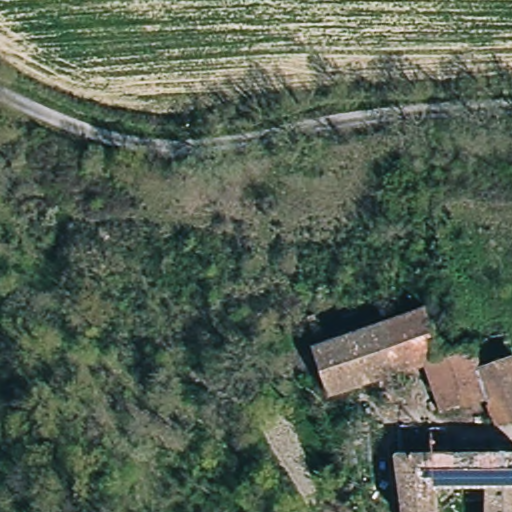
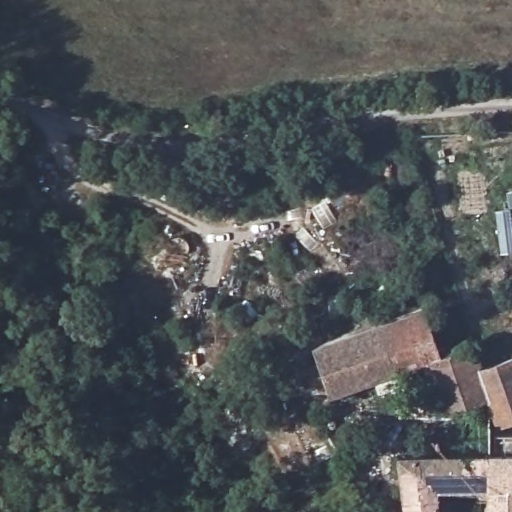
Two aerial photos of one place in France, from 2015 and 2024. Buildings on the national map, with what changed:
new [(507,193),(512,192),(512,209),(509,209),(512,231),(512,253),(501,254),(496,211),(507,209),(509,199),(507,193)]
unchanged [(387,372),(338,386),(321,344),(419,309),(434,349),(439,347),(443,355),(432,359),(387,372)]
unchanged [(481,371),(488,391),(449,405),(432,359),(443,355),(471,347),(481,371)]
unchanged [(481,371),(512,355),(512,416),(501,419),(488,391),(481,371)]
unchanged [(431,486),(433,512),(403,512),(399,456),(512,454),(512,485),(482,485),(431,486)]
unchanged [(512,485),(512,512),(483,512),(482,485),(512,485)]

